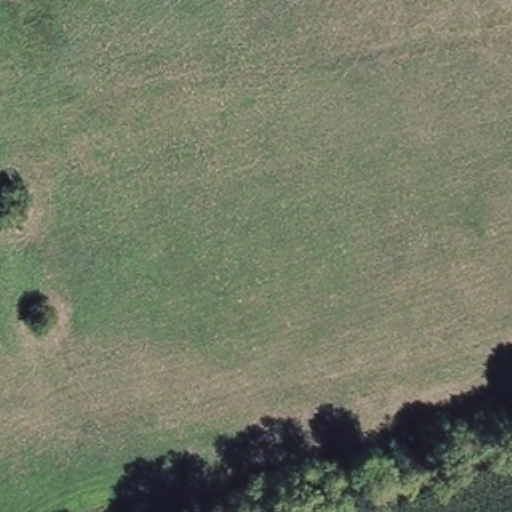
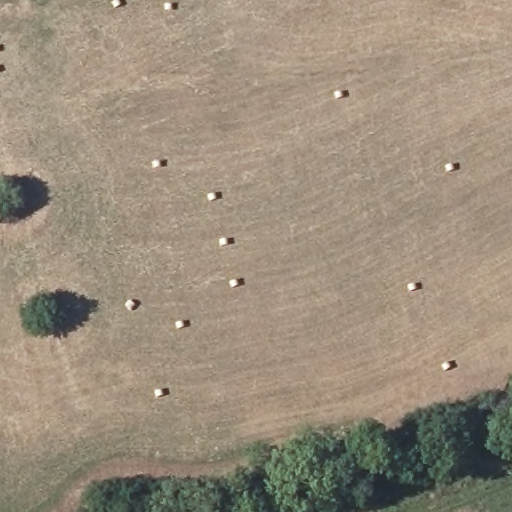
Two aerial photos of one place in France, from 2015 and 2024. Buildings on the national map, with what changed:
[]

